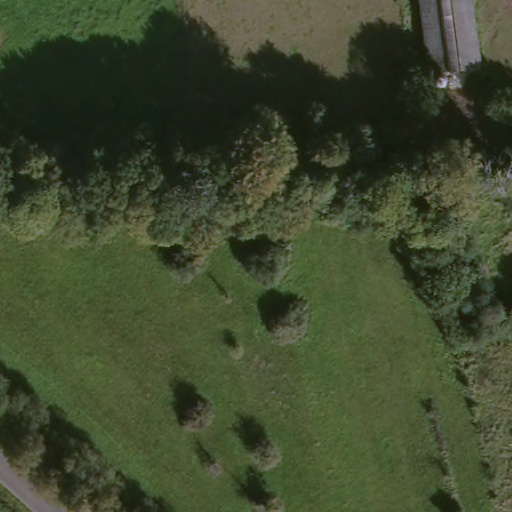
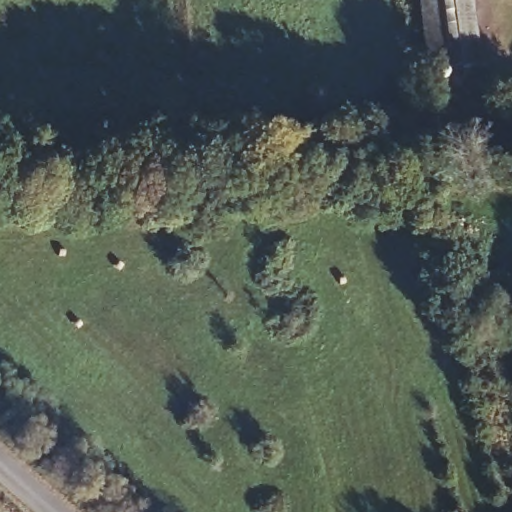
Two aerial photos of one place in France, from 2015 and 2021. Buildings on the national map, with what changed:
unchanged [(433,71),(423,0),(472,0),(482,62),(433,71)]

